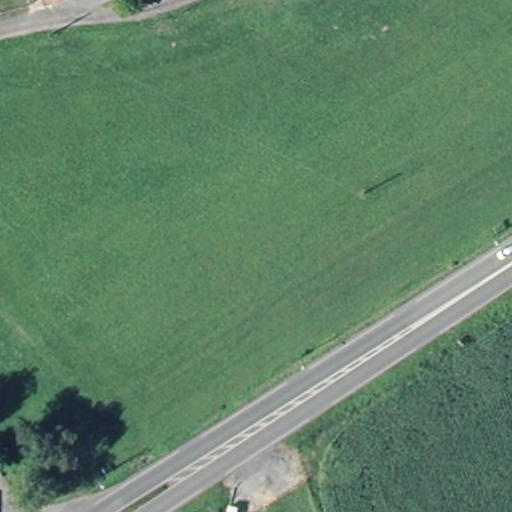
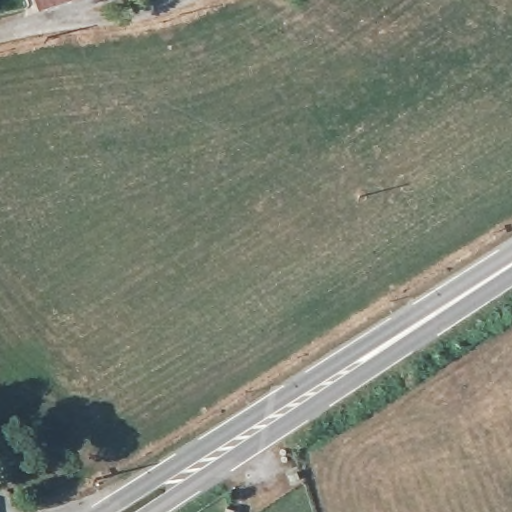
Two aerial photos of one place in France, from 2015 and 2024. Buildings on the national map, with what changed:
unchanged [(51,0),(55,0),(51,1),(51,0)]

